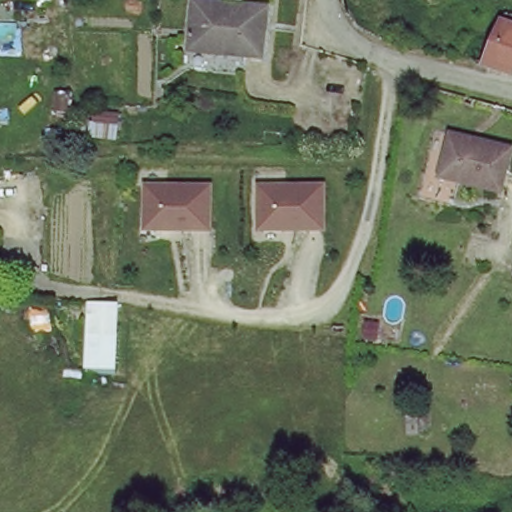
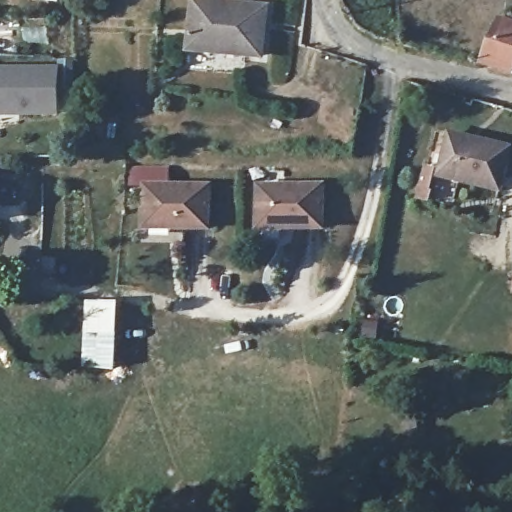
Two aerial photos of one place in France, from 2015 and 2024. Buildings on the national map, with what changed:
new [(32,1),(32,0),(60,0),(60,4),(32,1)]
unchanged [(194,49),(195,2),(265,4),(264,53),(194,49)]
unchanged [(483,68),(504,23),(507,14),(512,16),(512,75),(483,68)]
new [(57,112),(0,112),(0,67),(56,67),(57,112)]
unchanged [(465,185),(467,179),(447,172),(457,139),(511,156),(502,184),(498,194),(487,191),(465,185)]
unchanged [(143,229),(144,179),(216,182),(213,231),(143,229)]
unchanged [(257,232),(255,183),(327,183),(329,229),(257,232)]
unchanged [(118,304),(119,372),(90,371),(92,305),(118,304)]

